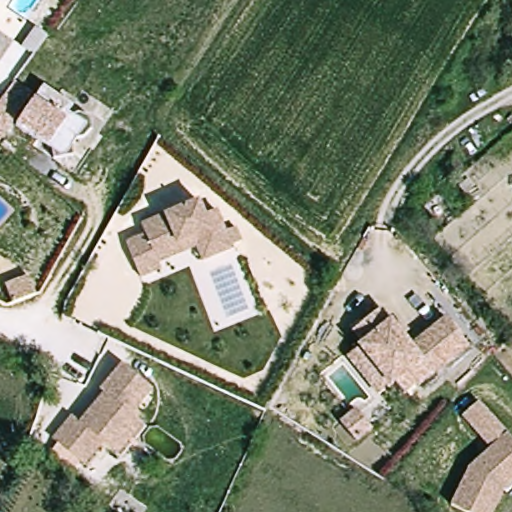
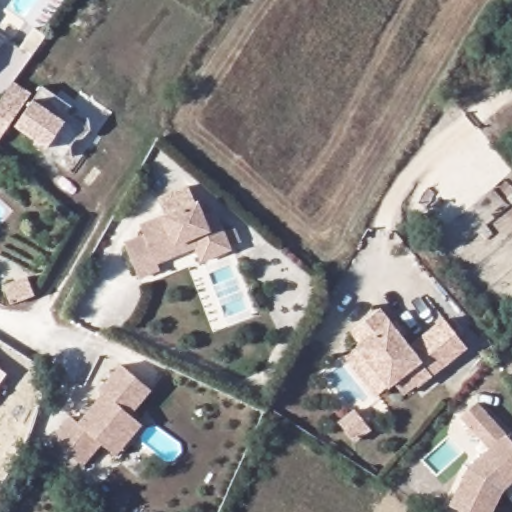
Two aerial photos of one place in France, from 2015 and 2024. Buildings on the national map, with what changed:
unchanged [(35,93),(13,124),(0,142),(0,103),(16,80),(35,93)]
unchanged [(75,105),(68,114),(73,117),(75,116),(80,115),(91,119),(95,131),(83,140),(79,140),(73,147),(75,158),(55,160),(53,152),(16,125),(48,85),(75,105)]
unchanged [(144,282),(124,248),(143,237),(138,228),(155,219),(192,199),(201,212),(210,207),(223,227),(233,220),(241,234),(231,240),(232,242),(204,258),(196,245),(161,265),(164,271),(144,282)]
unchanged [(30,278),(36,297),(13,305),(6,285),(30,278)]
unchanged [(356,350),(359,346),(348,335),(373,309),(409,344),(440,311),(466,336),(421,382),(408,370),(393,385),(356,350)]
unchanged [(114,453),(107,448),(98,440),(81,462),(48,437),(67,413),(75,420),(93,397),(99,388),(96,385),(116,359),(148,383),(128,410),(134,415),(139,419),(114,453)]
new [(0,381),(0,368),(6,372),(0,381)]
unchanged [(490,512),(475,512),(453,500),(471,460),(486,447),(458,414),(474,399),(512,443),(512,476),(509,478),(503,487),(490,512)]
unchanged [(365,462),(347,444),(362,428),(379,446),(365,462)]

